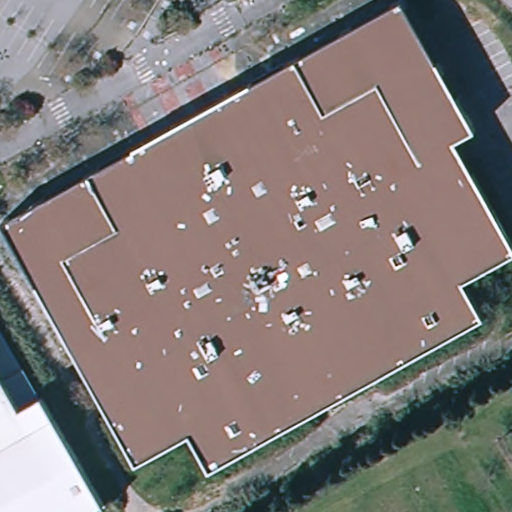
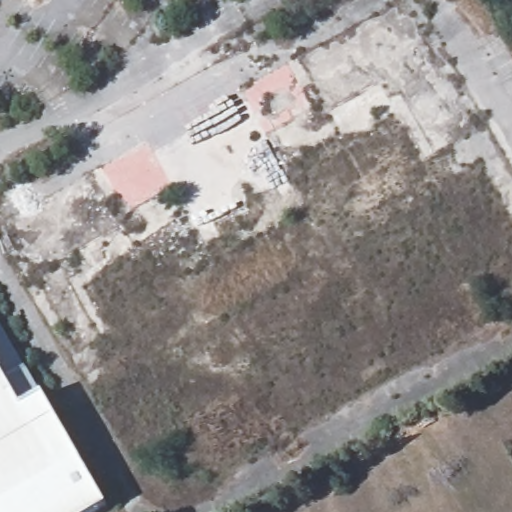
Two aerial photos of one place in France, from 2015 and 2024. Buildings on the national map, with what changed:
demolished [(459,280),(480,316),(208,468),(187,432),(143,354),(124,366),(107,334),(73,352),(0,222),(0,221),(397,0),(399,0),(471,130),(452,141),(418,159),(436,191),(416,202),(459,280)]
unchanged [(0,369),(0,329),(20,363),(2,374),(0,369)]
unchanged [(2,374),(19,402),(40,389),(107,500),(87,512),(0,512),(0,369),(2,374)]

